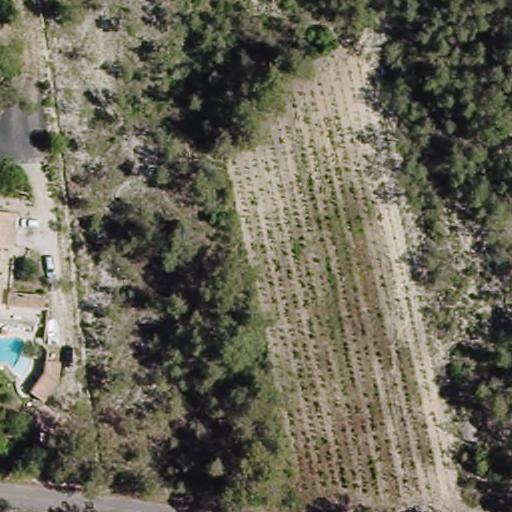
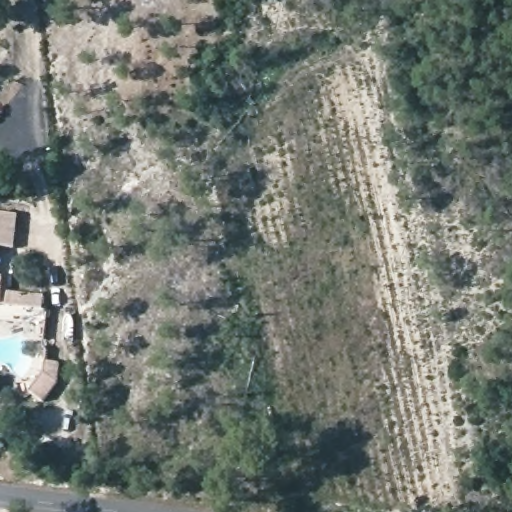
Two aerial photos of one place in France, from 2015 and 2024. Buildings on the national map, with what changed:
unchanged [(6,249),(0,248),(0,211),(10,212),(6,249)]
unchanged [(0,294),(0,275),(2,275),(0,294)]
unchanged [(43,295),(42,308),(7,305),(8,292),(43,295)]

